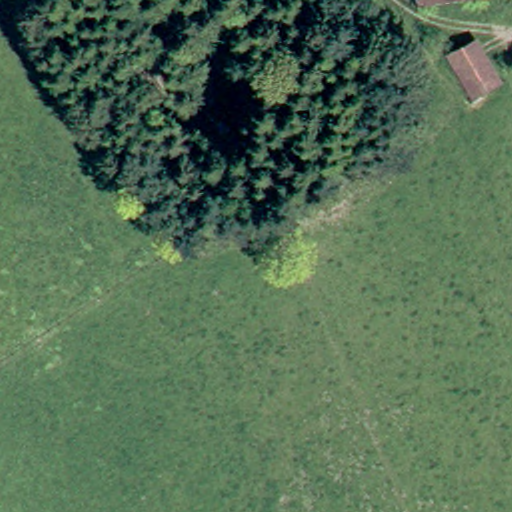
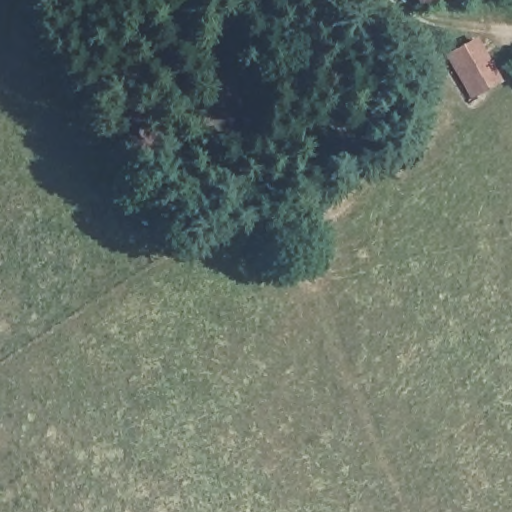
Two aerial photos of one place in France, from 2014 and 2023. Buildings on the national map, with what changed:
unchanged [(471,100),(458,69),(453,56),(483,43),(488,55),(502,87),(471,100)]

